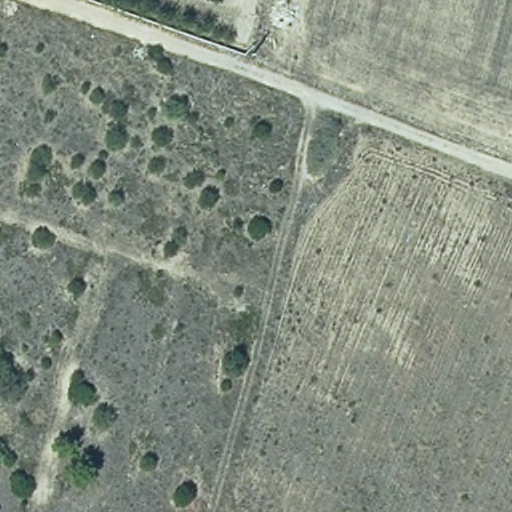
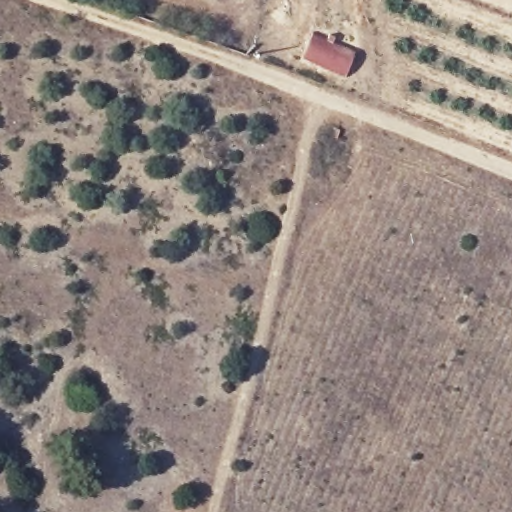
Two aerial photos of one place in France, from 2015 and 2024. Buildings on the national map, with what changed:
new [(345,76),(302,58),(314,31),(356,49),(345,76)]

